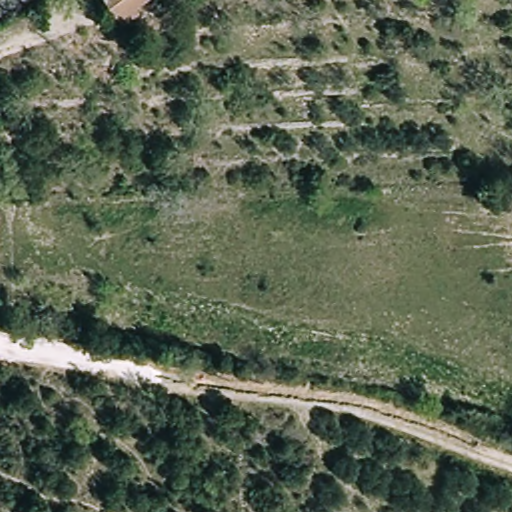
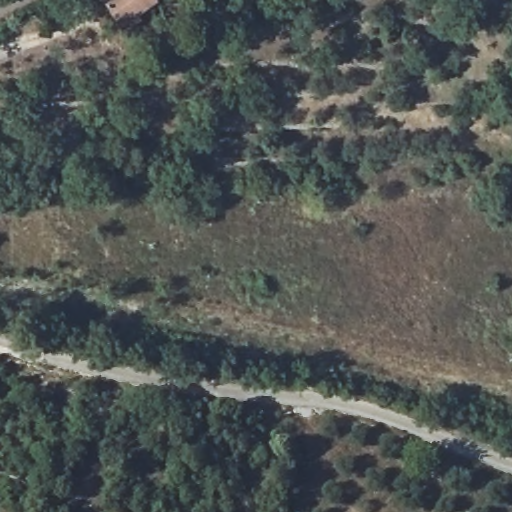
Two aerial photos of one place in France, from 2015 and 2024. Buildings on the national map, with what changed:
unchanged [(114,13),(108,0),(148,0),(137,4),(142,17),(119,26),(114,13)]

